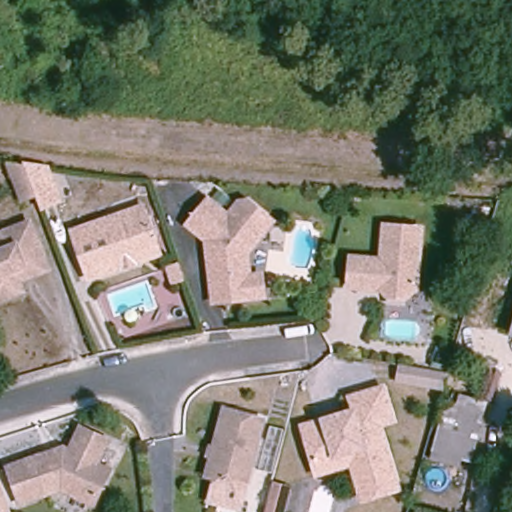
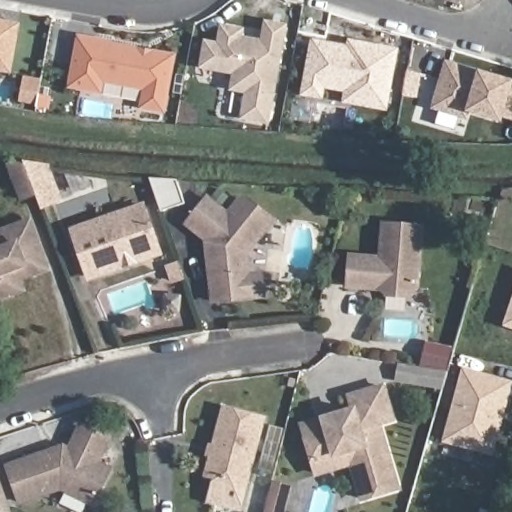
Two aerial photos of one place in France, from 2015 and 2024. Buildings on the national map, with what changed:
new [(0,23),(19,26),(14,50),(11,70),(0,69),(0,23)]
new [(268,122),(244,118),(249,92),(234,89),(237,73),(203,66),(208,44),(220,46),(224,28),(243,31),(241,39),(264,43),(268,24),(285,27),(268,122)]
new [(144,108),(147,89),(103,81),(101,91),(72,86),(81,37),(109,42),(108,44),(140,50),(140,55),(153,57),(154,53),(174,57),(164,111),(144,108)]
new [(325,99),(300,96),(311,38),(347,44),(348,40),(400,49),(389,111),(344,102),(344,93),(326,91),(325,99)]
new [(473,76),(480,78),(482,74),(512,83),(512,117),(503,115),(501,119),(469,110),(467,117),(436,107),(448,64),(475,72),(473,76)]
new [(40,95),(50,97),(48,109),(38,107),(40,95)]
unchanged [(28,203),(13,162),(30,164),(51,167),(64,200),(46,207),(42,197),(28,203)]
new [(178,181),(186,204),(163,212),(151,179),(178,181)]
unchanged [(265,296),(253,297),(214,302),(211,271),(208,252),(207,243),(209,240),(189,224),(210,199),(230,216),(241,203),(250,202),(275,223),(248,256),(250,276),(263,275),(265,296)]
unchanged [(125,266),(90,278),(74,231),(144,206),(157,244),(161,253),(125,266)]
unchanged [(44,258),(15,269),(22,290),(0,298),(0,233),(30,222),(44,258)]
unchanged [(422,227),(417,288),(408,296),(388,294),(380,285),(366,284),(366,287),(349,286),(352,256),(382,259),(385,224),(422,227)]
unchanged [(175,282),(169,266),(180,263),(185,276),(185,278),(175,282)]
new [(503,327),(512,301),(512,331),(503,327)]
new [(495,458),(442,443),(462,366),(512,380),(512,391),(495,458)]
unchanged [(407,367),(438,376),(434,390),(403,382),(407,367)]
unchanged [(320,463),(309,427),(329,421),(343,416),(360,411),(356,397),(389,388),(399,421),(385,425),(405,489),(369,500),(358,464),(323,475),(320,463)]
unchanged [(234,512),(207,504),(213,482),(206,470),(220,415),(259,426),(236,512),(234,512)]
unchanged [(18,500),(6,464),(61,446),(68,449),(80,426),(106,439),(95,463),(108,469),(90,503),(58,487),(18,500)]
unchanged [(0,512),(0,485),(9,512),(0,512)]
unchanged [(287,490),(280,512),(265,512),(272,486),(287,490)]

